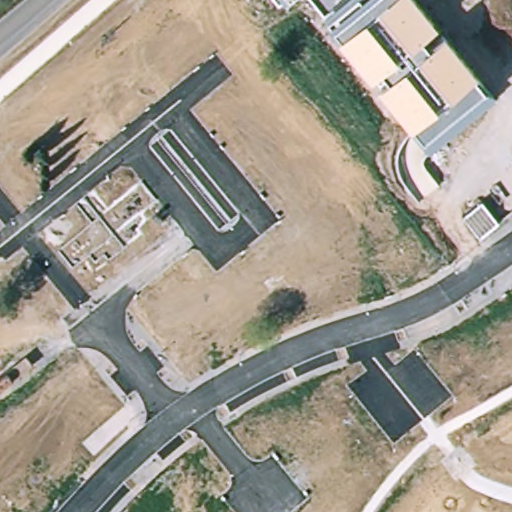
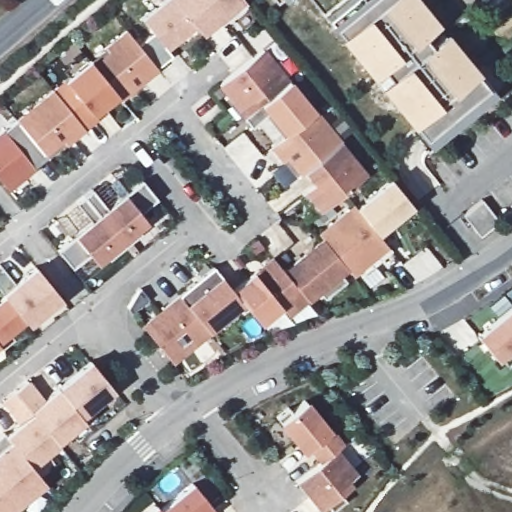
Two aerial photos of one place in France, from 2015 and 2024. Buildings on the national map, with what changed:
new [(160,0),(172,0),(193,24),(165,48),(140,17),(160,0)]
demolished [(177,18),(170,0),(230,0),(244,50),(227,54),(224,46),(179,62),(166,21),(177,18)]
new [(246,4),(220,26),(216,22),(202,34),(193,24),(172,0),(242,0),(243,0),(246,4)]
unchanged [(427,144),(412,122),(410,125),(378,84),(389,75),(382,66),(369,77),(337,36),(339,34),(332,24),(326,18),(323,14),(340,0),(418,0),(436,22),(420,34),(428,43),(443,31),(475,72),(473,73),(484,85),(492,90),(427,144)]
new [(120,100),(116,96),(89,63),(126,33),(157,70),(143,81),(139,85),(120,100)]
new [(271,148),(282,138),(266,118),(252,130),(243,119),(226,99),(230,96),(221,85),(264,50),(275,63),(274,63),(289,81),(315,112),(316,111),(341,141),(340,142),(309,168),(300,175),(296,179),(283,163),(271,148)]
new [(89,63),(116,96),(80,126),(53,93),(89,63)]
new [(53,93),(80,126),(84,130),(58,152),(47,160),(46,159),(7,191),(0,183),(0,136),(16,123),(53,93)]
new [(340,142),(367,175),(326,209),(310,189),(320,181),(309,168),(340,142)]
new [(138,227),(142,232),(109,259),(105,255),(96,263),(89,254),(73,268),(58,250),(75,237),(73,234),(90,220),(76,204),(92,189),(106,206),(124,192),(126,195),(142,181),(156,199),(140,212),(146,221),(138,227)]
new [(390,181),(410,205),(375,233),(356,209),(390,181)]
new [(481,199),(498,220),(479,236),(462,214),(481,199)]
new [(373,265),(368,259),(350,274),(345,268),(323,241),(319,236),(354,207),(356,209),(375,233),(385,245),(390,251),(373,265)]
unchanged [(284,312),(279,306),(258,323),(241,303),(233,292),(258,272),(259,273),(274,261),(284,273),(323,241),(345,268),(338,273),(344,280),(323,298),(317,291),(306,300),(287,316),(284,312)]
new [(0,266),(14,282),(34,266),(61,298),(27,325),(24,321),(3,294),(0,292),(0,266)]
unchanged [(213,268),(233,292),(241,303),(207,331),(180,298),(179,297),(213,268)]
new [(24,321),(0,340),(0,297),(3,294),(24,321)]
unchanged [(180,298),(207,331),(209,333),(172,364),(143,328),(180,298)]
new [(512,305),(512,306),(512,348),(496,361),(475,335),(512,305)]
new [(91,363),(113,390),(80,418),(58,391),(91,363)]
new [(82,420),(56,442),(29,410),(15,393),(30,381),(43,398),(55,387),(58,391),(80,418),(82,420)]
new [(21,426),(3,404),(15,393),(58,445),(31,468),(7,438),(21,426)]
new [(288,409),(291,413),(305,402),(329,431),(330,430),(343,446),(336,451),(322,463),(310,448),(304,453),(276,419),(288,409)]
new [(0,486),(0,439),(4,435),(45,484),(17,506),(0,486)]
new [(333,511),(328,506),(321,512),(320,512),(296,484),(322,463),(336,451),(355,474),(347,481),(351,486),(341,495),(346,500),(333,511)]
new [(193,485),(215,511),(214,512),(161,512),(161,511),(193,485)]
new [(10,512),(0,512),(0,486),(17,506),(10,512)]
new [(157,508),(161,511),(161,512),(152,512),(157,508)]

